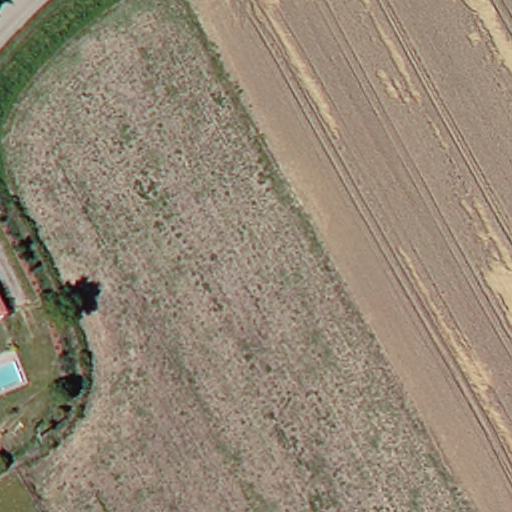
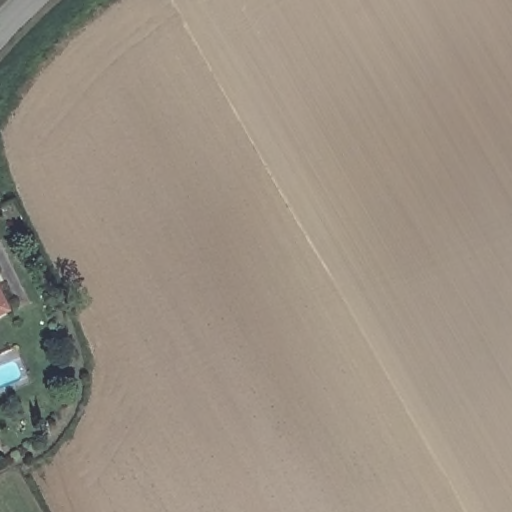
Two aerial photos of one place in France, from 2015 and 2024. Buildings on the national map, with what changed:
unchanged [(9,311),(0,316),(0,288),(11,310),(9,311)]

